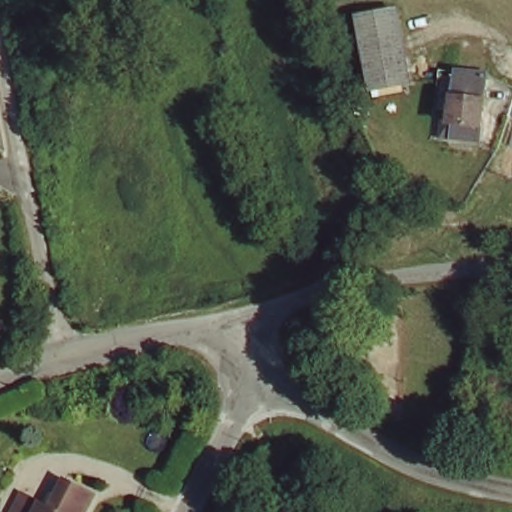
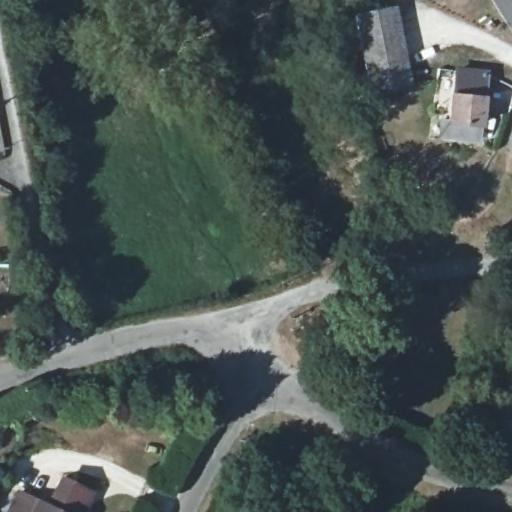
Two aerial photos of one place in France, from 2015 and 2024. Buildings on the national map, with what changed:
unchanged [(402,90),(362,91),(357,14),(397,10),(402,90)]
unchanged [(450,126),(452,112),(444,111),(447,97),(457,60),(490,70),(485,97),(479,119),(473,132),(450,126)]
unchanged [(44,503),(58,475),(89,490),(78,512),(7,512),(18,491),(44,503)]

